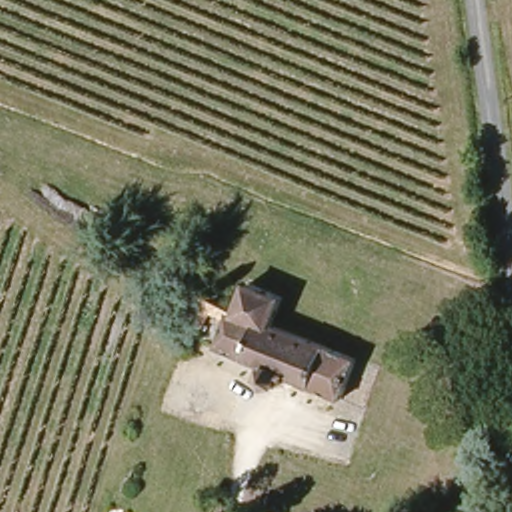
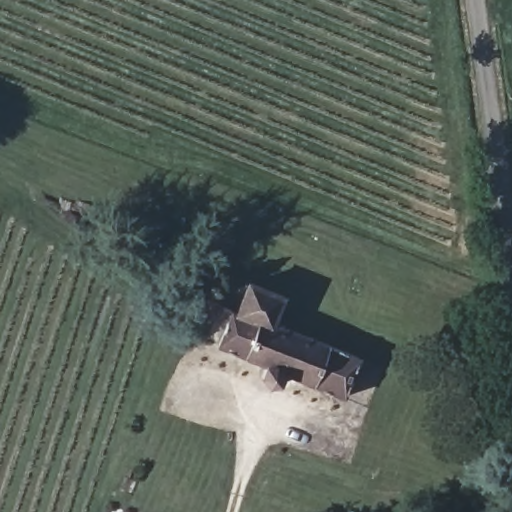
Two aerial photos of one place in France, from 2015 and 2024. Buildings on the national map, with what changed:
unchanged [(248,286),(274,296),(265,319),(357,359),(342,397),(282,371),(278,382),(268,384),(260,377),(265,362),(238,352),(224,347),(248,286)]

